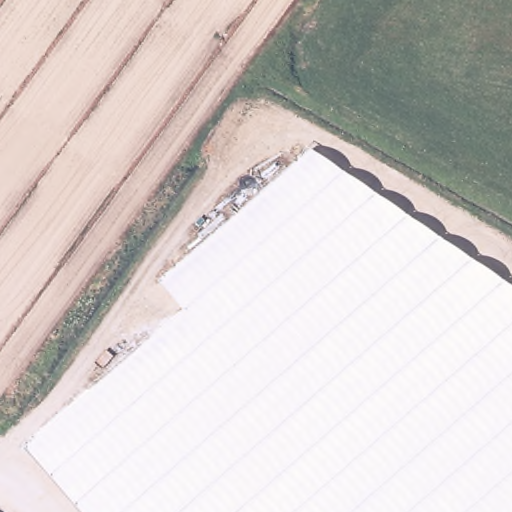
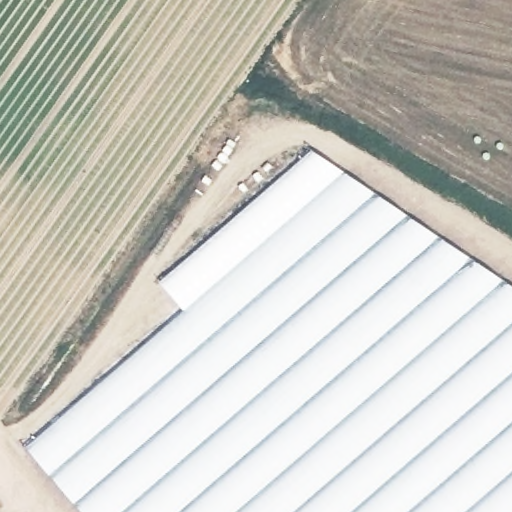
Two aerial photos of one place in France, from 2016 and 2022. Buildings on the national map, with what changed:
unchanged [(182,308),(161,281),(313,149),(512,284),(512,512),(83,512),(27,447),(182,308)]

